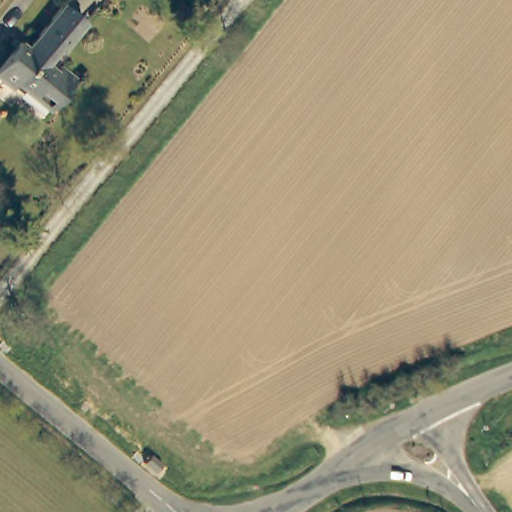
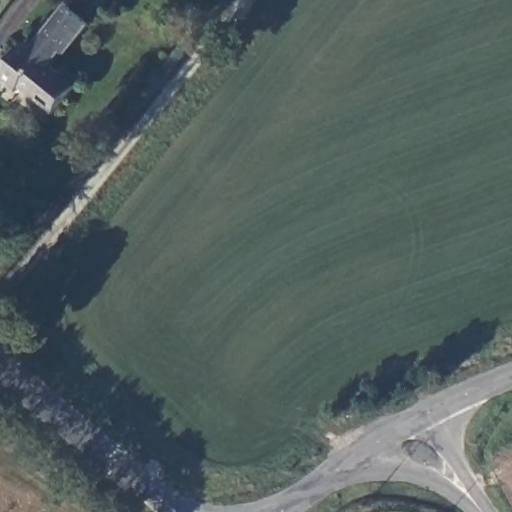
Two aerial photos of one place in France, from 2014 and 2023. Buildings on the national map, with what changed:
unchanged [(21,49),(29,55),(66,11),(88,29),(65,60),(60,57),(49,70),(59,78),(63,72),(79,86),(53,118),(19,91),(15,96),(0,84),(0,76),(21,49)]

